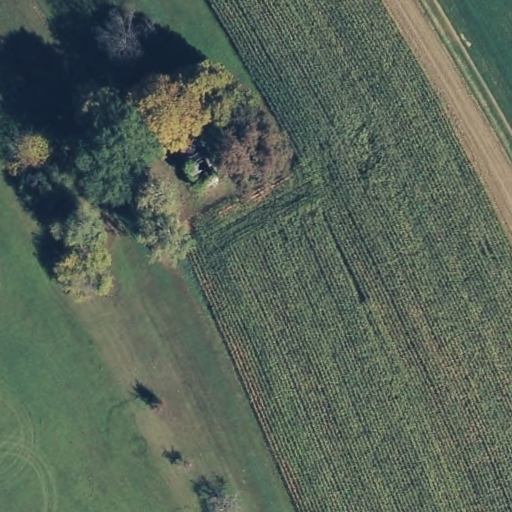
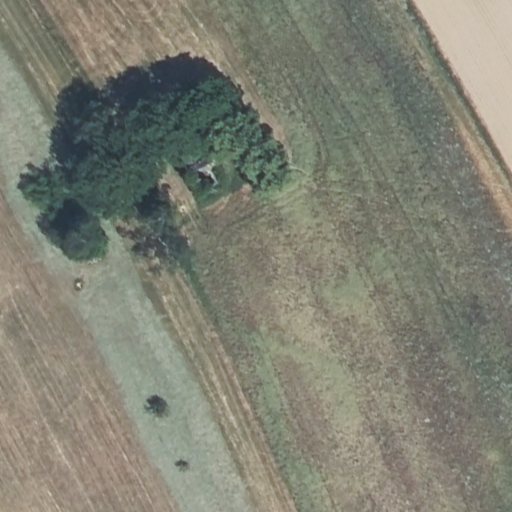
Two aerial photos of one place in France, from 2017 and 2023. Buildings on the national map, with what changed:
unchanged [(200,149),(218,182),(199,192),(181,159),(200,149)]

